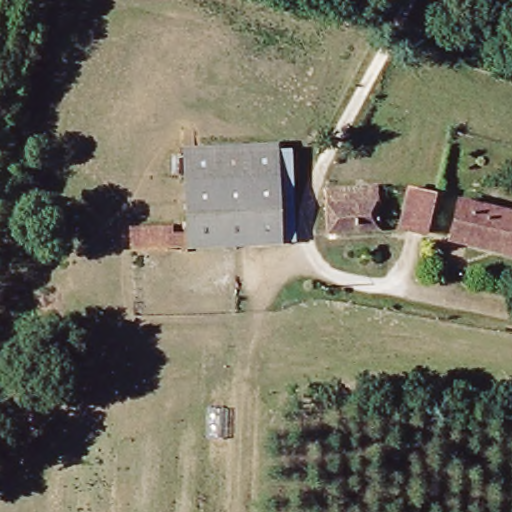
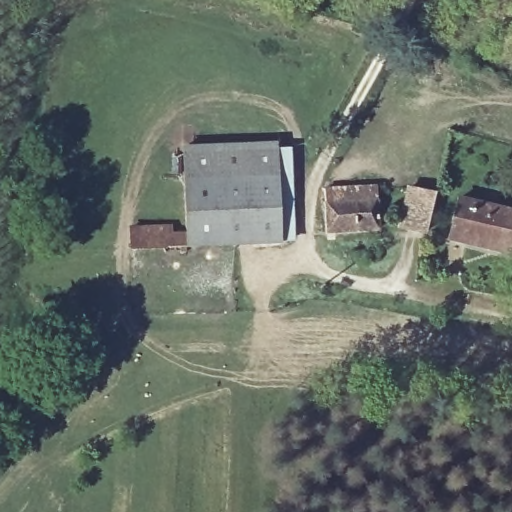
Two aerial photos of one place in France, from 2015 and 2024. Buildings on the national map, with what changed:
unchanged [(280,242),(127,250),(126,227),(165,226),(165,235),(181,234),(177,150),(275,146),(280,242)]
unchanged [(376,220),(330,231),(320,190),(366,180),(376,220)]
unchanged [(407,189),(431,194),(423,232),(400,227),(407,189)]
unchanged [(450,239),(457,200),(512,210),(512,251),(450,239)]

